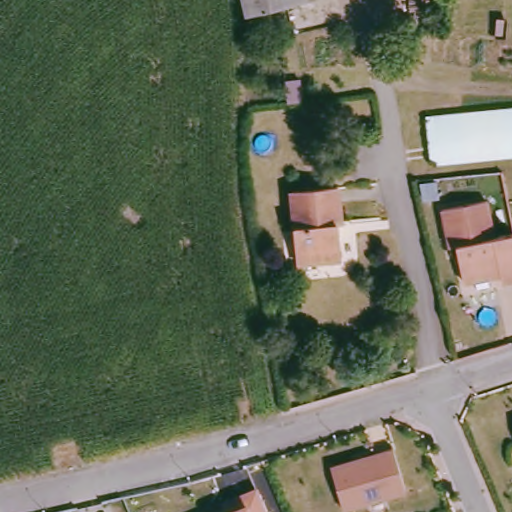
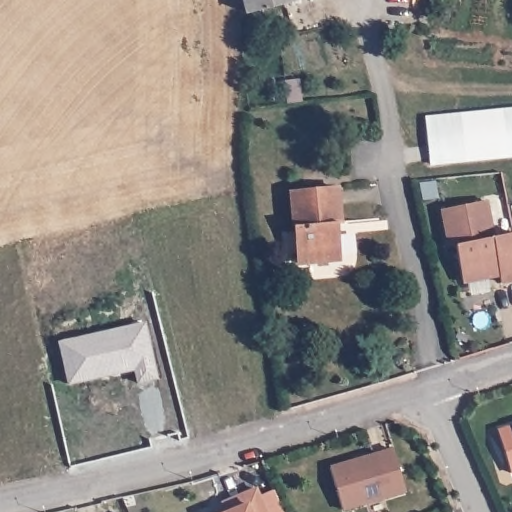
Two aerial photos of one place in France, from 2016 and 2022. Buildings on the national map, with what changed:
unchanged [(243,0),(295,0),(246,13),(243,0)]
unchanged [(420,116),(512,109),(512,154),(424,161),(420,116)]
unchanged [(292,192),(336,189),(340,224),(336,224),(338,261),(298,263),(292,192)]
unchanged [(503,275),(466,283),(459,246),(452,248),(445,212),(489,202),(496,238),(512,235),(512,281),(505,283),(503,275)]
new [(138,384),(136,371),(70,386),(60,344),(145,325),(157,380),(138,384)]
unchanged [(342,508),(329,462),(392,446),(406,491),(342,508)]
unchanged [(222,508),(219,499),(255,485),(267,512),(214,512),(222,508)]
unchanged [(213,509),(214,512),(206,512),(213,509)]

